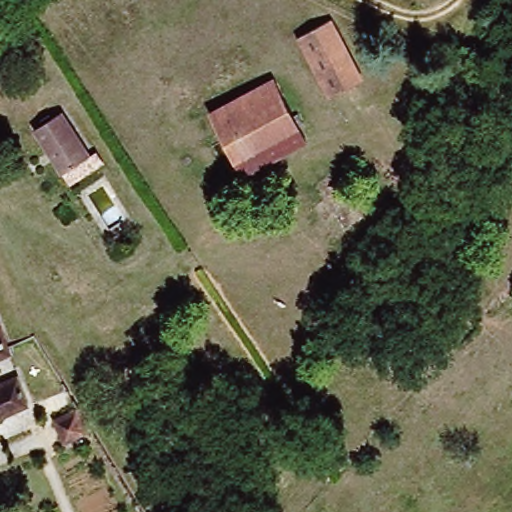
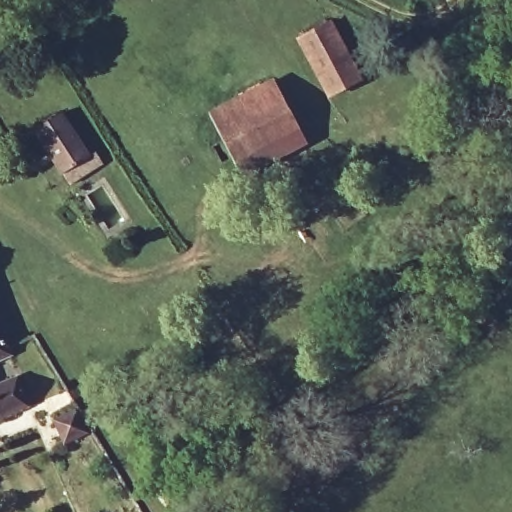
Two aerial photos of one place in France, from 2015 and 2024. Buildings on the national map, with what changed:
unchanged [(327,97),(295,45),(330,24),(361,77),(327,97)]
unchanged [(308,140),(244,179),(209,122),(274,83),(308,140)]
unchanged [(88,163),(95,158),(102,169),(76,187),(66,173),(61,176),(32,132),(57,116),(88,163)]
unchanged [(13,365),(8,367),(0,370),(0,333),(13,365)]
unchanged [(13,384),(23,407),(0,420),(0,390),(13,384)]
unchanged [(60,444),(50,424),(73,411),(85,431),(60,444)]

